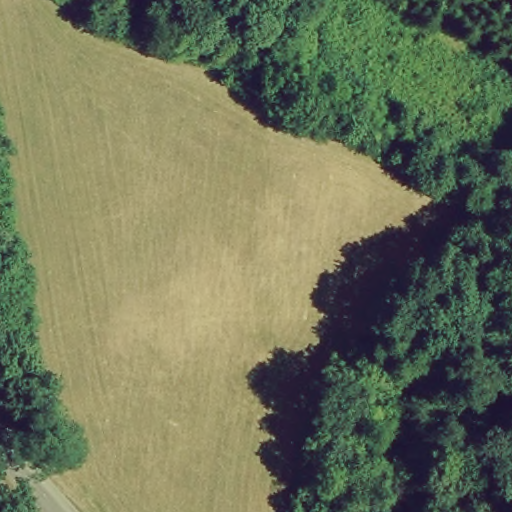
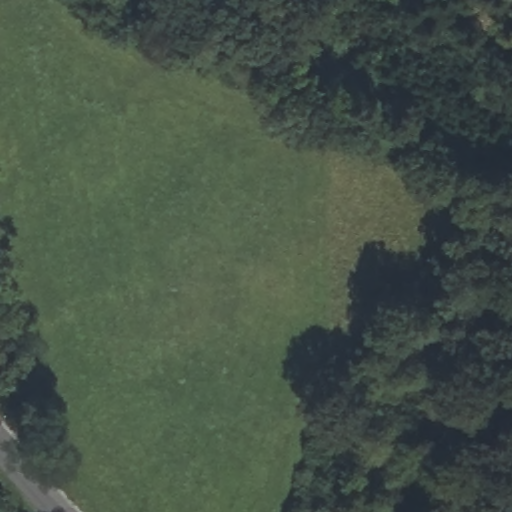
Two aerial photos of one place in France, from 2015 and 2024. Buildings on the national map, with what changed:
unchanged [(207,0),(232,0),(225,15),(207,0)]

